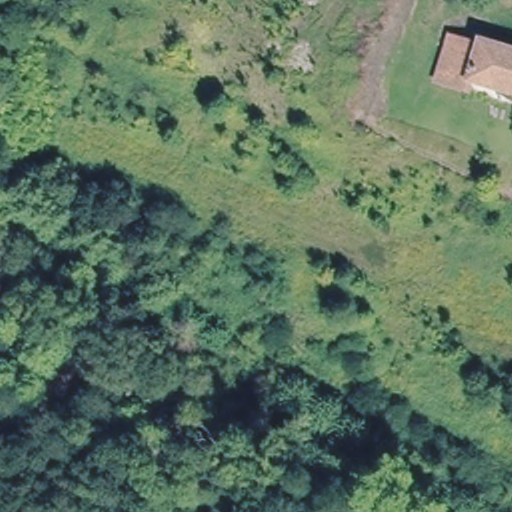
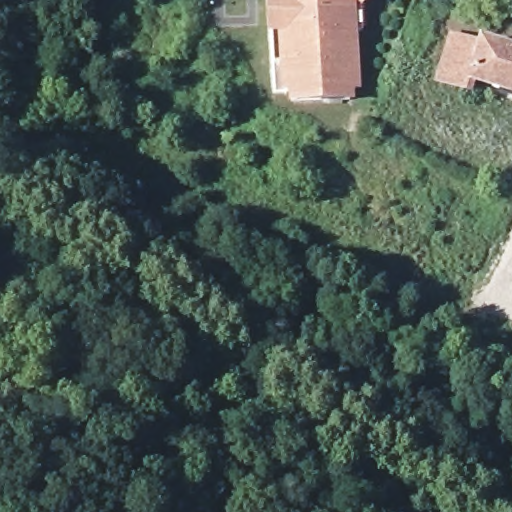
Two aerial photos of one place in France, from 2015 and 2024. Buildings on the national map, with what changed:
new [(357,2),(359,30),(349,30),(352,89),(271,94),(265,0),(360,0),(357,2)]
unchanged [(478,42),(512,53),(512,95),(467,80),(464,90),(436,81),(442,61),(450,40),(456,42),(477,49),(478,42)]

